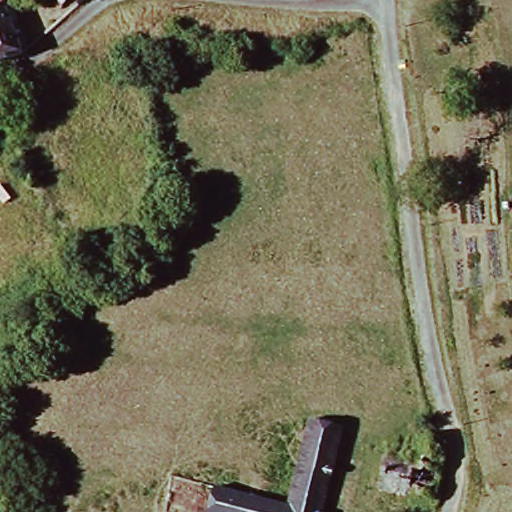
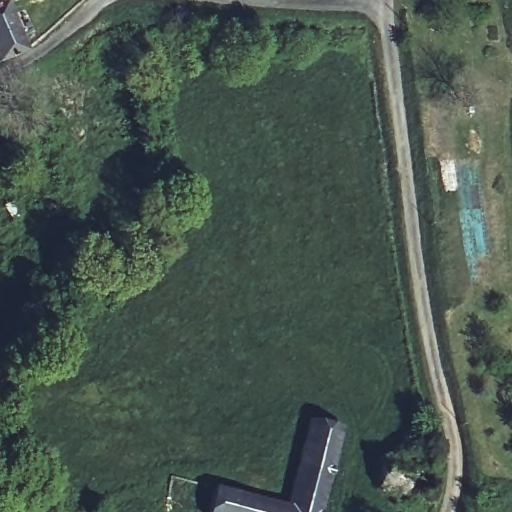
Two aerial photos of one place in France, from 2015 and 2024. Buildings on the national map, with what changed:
unchanged [(31,58),(3,71),(0,62),(0,0),(11,0),(31,58)]
unchanged [(291,509),(314,422),(345,431),(325,512),(211,512),(216,490),(291,509)]
unchanged [(442,451),(436,502),(380,492),(383,462),(416,469),(420,448),(431,449),(442,451)]

